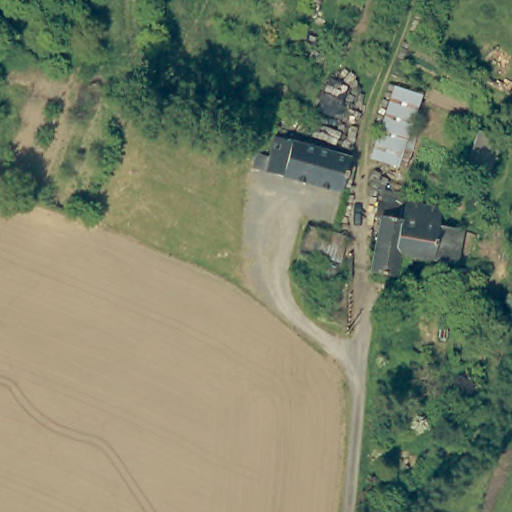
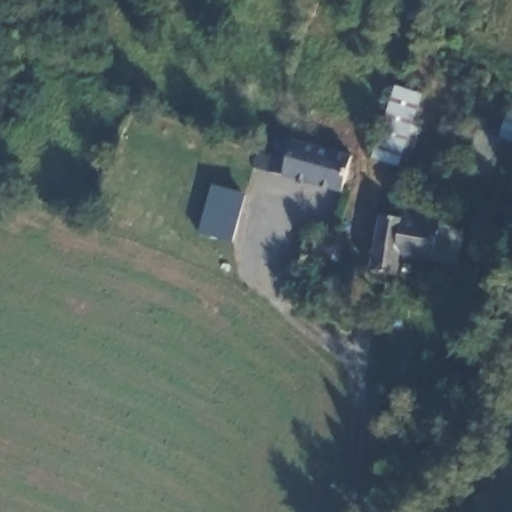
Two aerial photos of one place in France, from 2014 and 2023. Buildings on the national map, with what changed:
unchanged [(395,165),(371,157),(395,85),(419,94),(395,165)]
unchanged [(471,131),(495,141),(478,179),(455,169),(471,131)]
unchanged [(257,151),(267,155),(274,136),(337,153),(349,157),(341,192),(253,167),(257,151)]
new [(231,244),(198,235),(213,184),(247,193),(231,244)]
unchanged [(393,253),(389,276),(366,271),(375,217),(369,216),(371,202),(398,207),(393,253)]
unchanged [(435,207),(433,225),(456,228),(451,263),(393,253),(398,207),(399,202),(435,207)]
unchanged [(327,244),(330,232),(346,236),(342,248),(327,244)]

